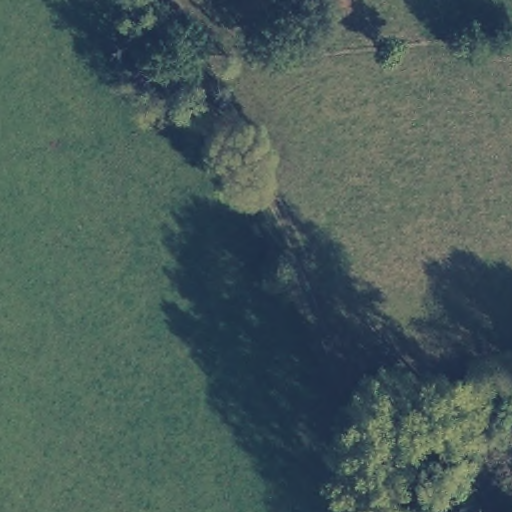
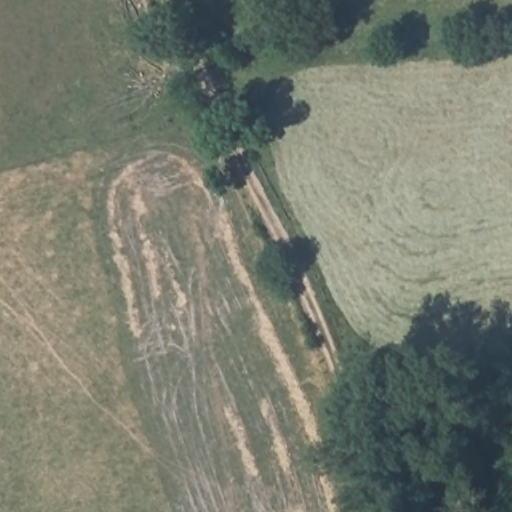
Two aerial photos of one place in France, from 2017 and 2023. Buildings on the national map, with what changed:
unchanged [(249,0),(297,0),(257,18),(249,0)]

